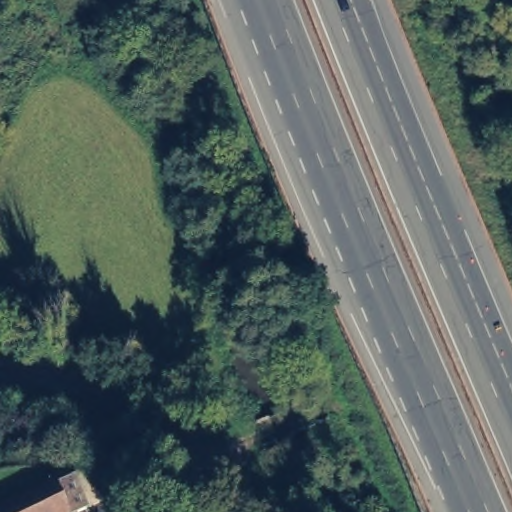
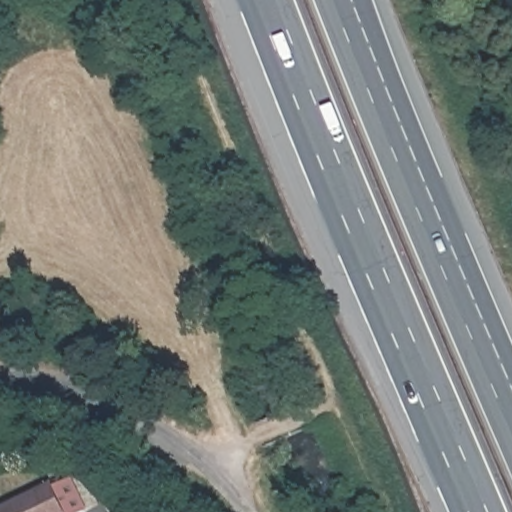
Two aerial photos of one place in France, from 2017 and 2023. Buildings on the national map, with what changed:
unchanged [(61,494),(78,486),(90,512),(0,512),(0,510),(57,485),(61,494)]

